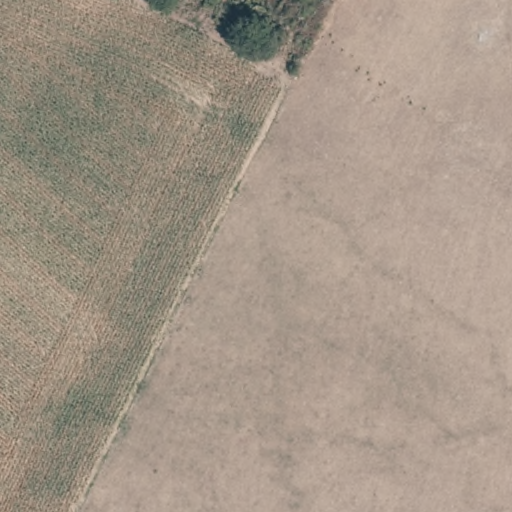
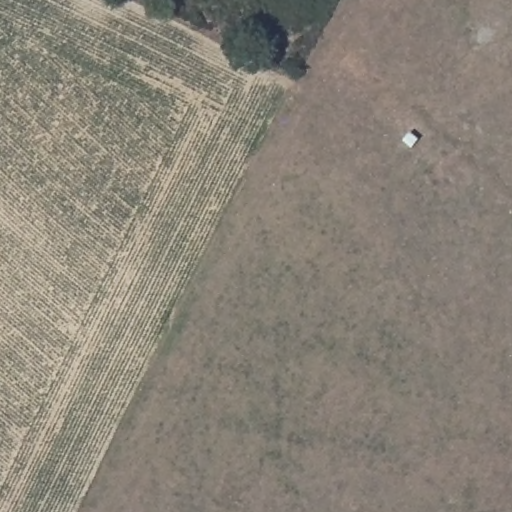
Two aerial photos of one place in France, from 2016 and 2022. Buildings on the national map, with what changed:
[]

